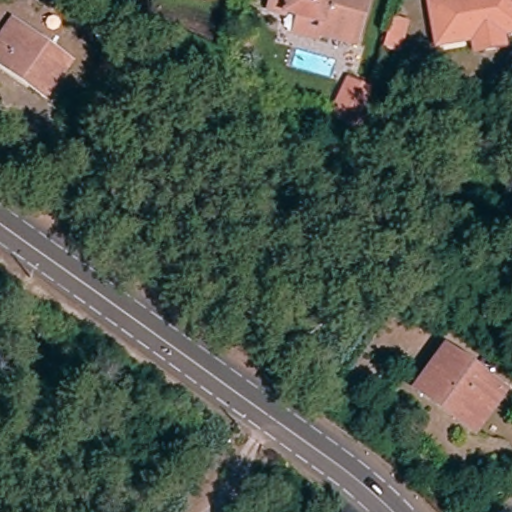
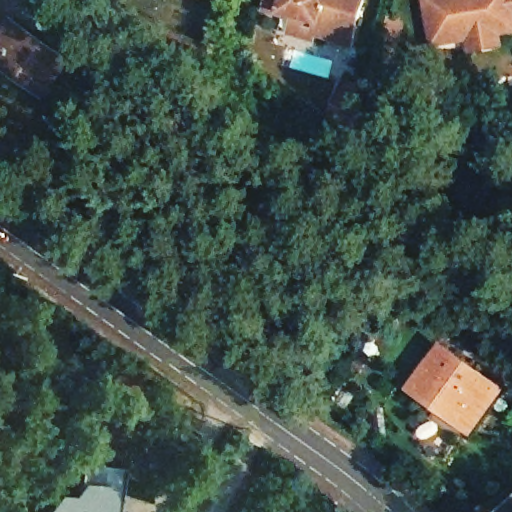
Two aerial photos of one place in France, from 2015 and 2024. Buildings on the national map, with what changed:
unchanged [(202,5),(182,0),(204,0),(202,5)]
unchanged [(300,28),(305,11),(294,8),(292,4),(284,10),(275,8),(277,0),(370,0),(359,39),(323,29),(321,34),(300,28)]
unchanged [(503,36),(504,49),(469,56),(468,43),(431,48),(426,0),(512,0),(512,35),(503,36)]
unchanged [(409,16),(401,47),(387,41),(394,12),(409,16)]
unchanged [(0,36),(8,25),(68,69),(41,105),(22,91),(24,88),(0,70),(0,36)]
unchanged [(345,95),(349,83),(354,84),(371,89),(358,136),(343,128),(337,125),(342,108),(345,95)]
unchanged [(504,393),(474,434),(414,391),(444,350),(504,393)]
new [(80,467),(85,468),(118,471),(123,471),(119,512),(55,512),(60,504),(76,505),(80,467)]

